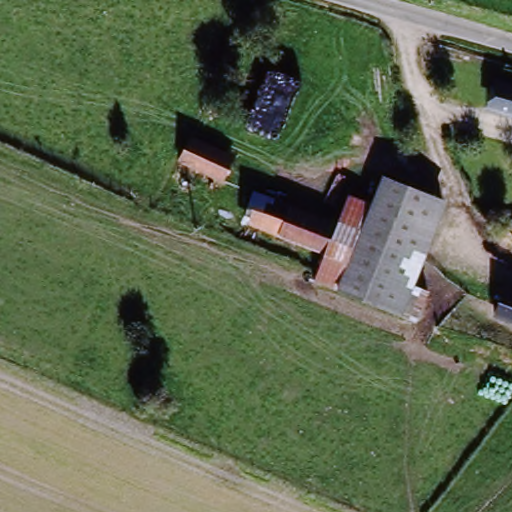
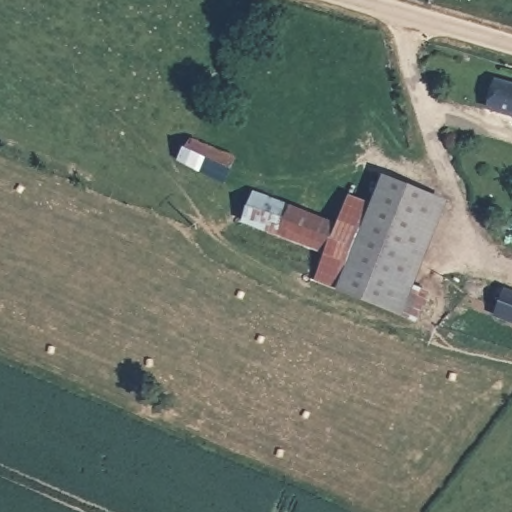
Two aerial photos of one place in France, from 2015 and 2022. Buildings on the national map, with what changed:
unchanged [(487,82),(492,69),(512,74),(512,119),(492,112),(500,87),(487,82)]
unchanged [(222,186),(183,164),(194,145),(232,168),(222,186)]
unchanged [(350,199),(374,208),(384,179),(447,205),(416,289),(432,296),(418,326),(340,295),(315,285),(327,257),(339,229),(350,199)]
unchanged [(327,257),(244,226),(254,195),(339,229),(327,257)]
unchanged [(496,320),(507,294),(512,296),(512,327),(496,320)]

